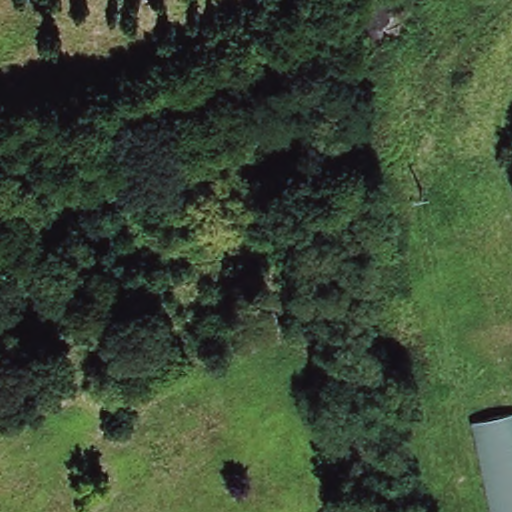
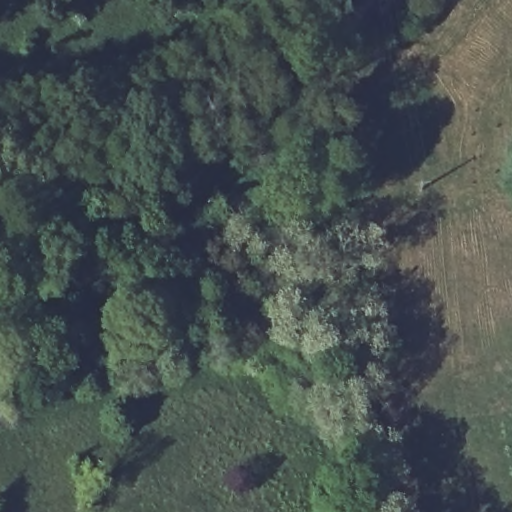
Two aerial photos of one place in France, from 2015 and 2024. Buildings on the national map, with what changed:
demolished [(471,417),(512,408),(512,512),(491,512),(471,417)]

